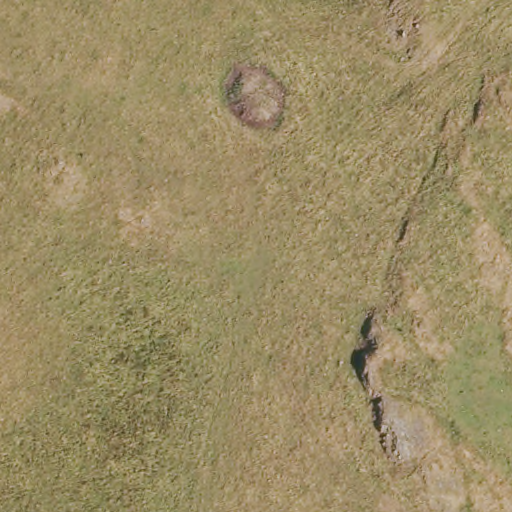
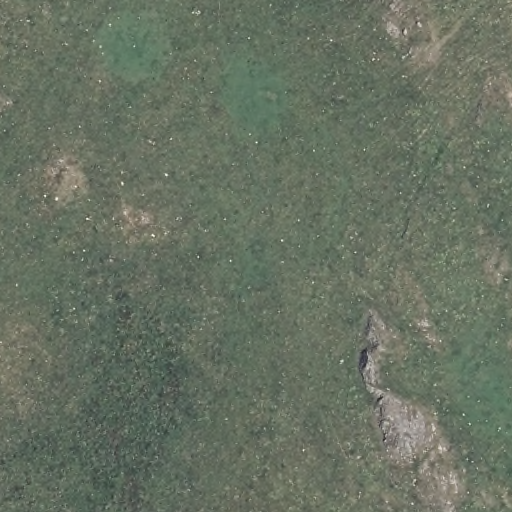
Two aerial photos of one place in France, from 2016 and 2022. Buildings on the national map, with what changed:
[]

